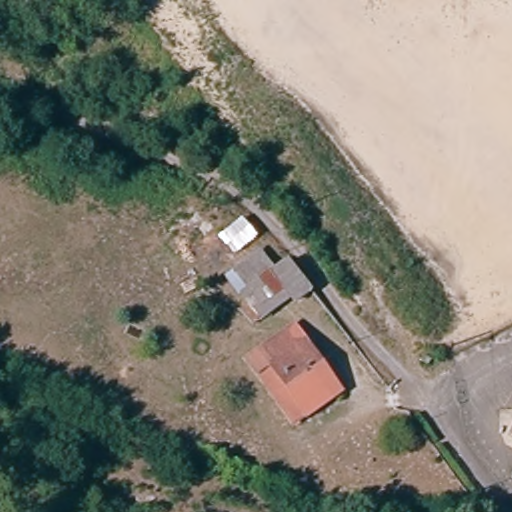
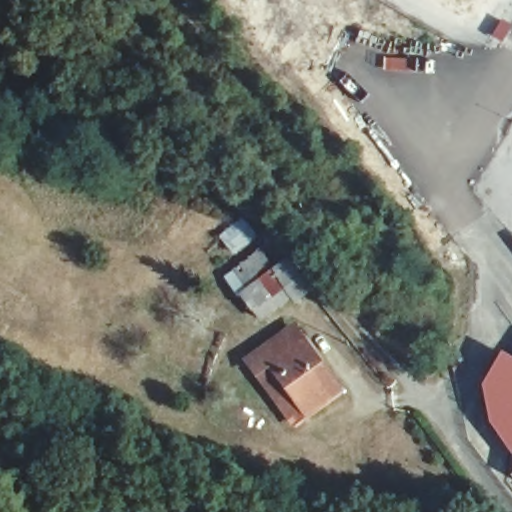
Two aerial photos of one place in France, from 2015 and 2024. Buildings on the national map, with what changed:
unchanged [(237,294),(225,279),(257,252),(270,268),(283,257),(311,291),(292,305),(288,299),(259,323),(237,294)]
unchanged [(292,427),(244,359),(279,334),(289,327),(297,338),(337,394),(292,427)]
new [(483,387),(502,353),(512,358),(512,455),(491,424),(483,387)]
demolished [(510,483),(512,479),(512,484),(510,483)]

